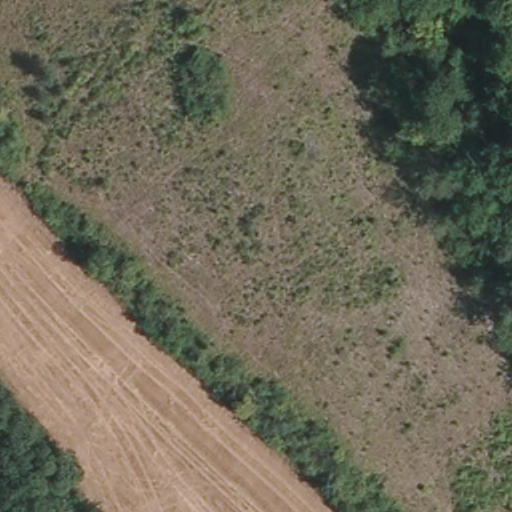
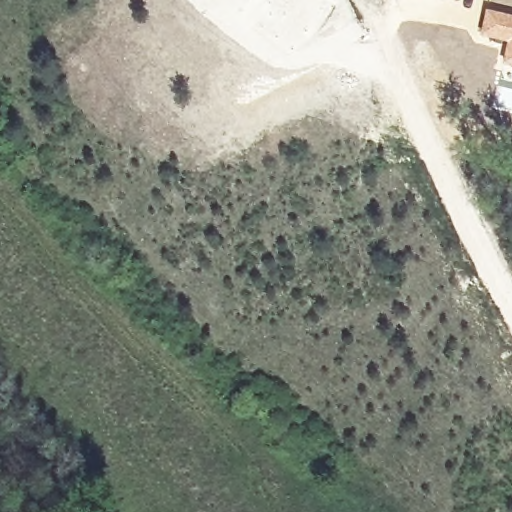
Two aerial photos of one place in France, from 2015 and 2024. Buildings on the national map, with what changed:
new [(485,9),(512,15),(512,67),(500,65),(505,43),(479,35),(485,9)]

